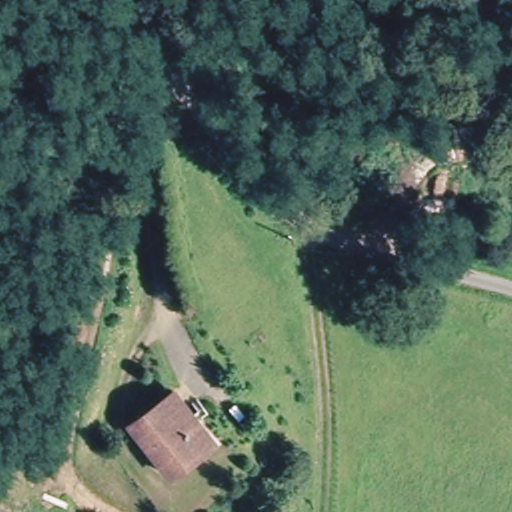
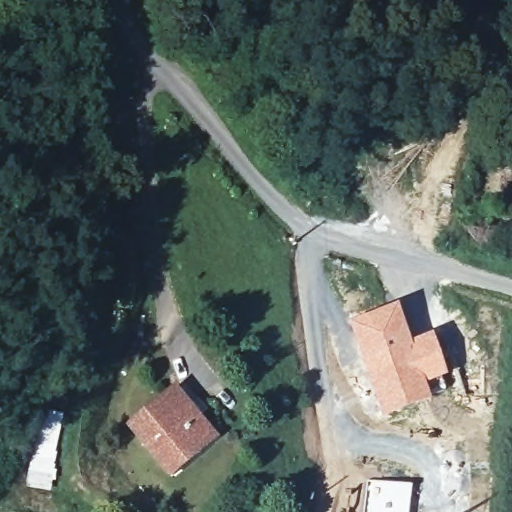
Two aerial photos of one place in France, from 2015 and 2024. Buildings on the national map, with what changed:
new [(397,305),(410,342),(432,335),(447,378),(426,386),(431,401),(382,420),(348,323),(397,305)]
unchanged [(163,396),(170,391),(189,416),(207,440),(164,472),(124,424),(163,396)]
new [(56,482),(51,482),(52,488),(26,488),(26,474),(29,474),(29,463),(31,463),(31,440),(49,440),(49,443),(56,443),(56,482)]
new [(411,486),(408,512),(364,512),(368,481),(411,486)]

